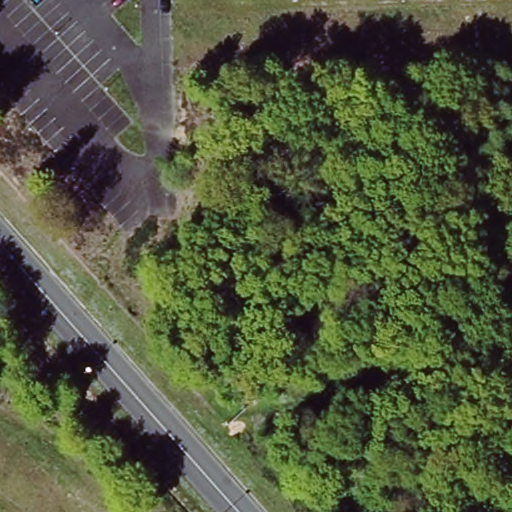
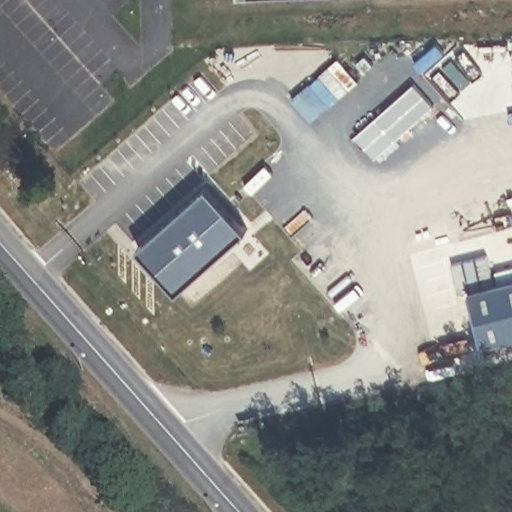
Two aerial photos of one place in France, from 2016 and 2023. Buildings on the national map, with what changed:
new [(340,60),(360,82),(342,99),(322,76),(340,60)]
new [(412,82),(433,104),(375,157),(355,135),(412,82)]
new [(178,290),(140,247),(208,184),(247,230),(178,290)]
new [(484,343),(470,290),(512,278),(512,336),(484,343)]

